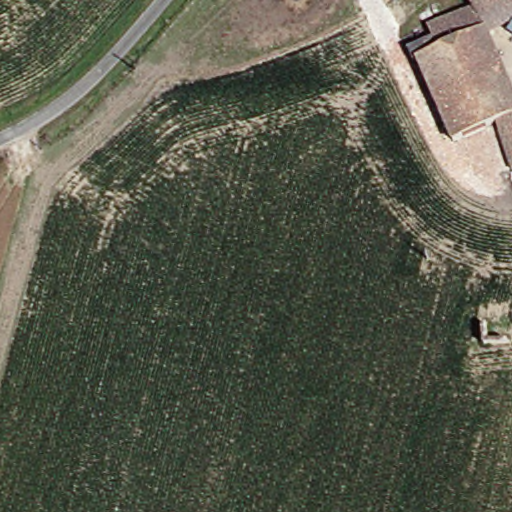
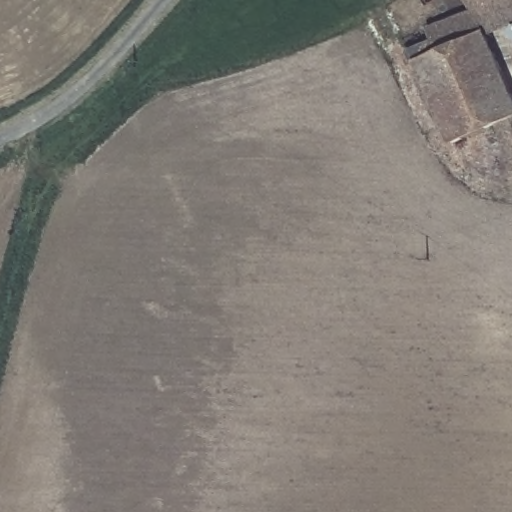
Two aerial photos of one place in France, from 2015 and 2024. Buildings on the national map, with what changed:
unchanged [(495,38),(512,73),(512,153),(503,128),(462,147),(428,70),(417,74),(412,64),(439,52),(435,38),(479,13),(472,0),(512,0),(512,29),(495,38)]
unchanged [(492,345),(490,322),(512,320),(512,342),(492,345)]

